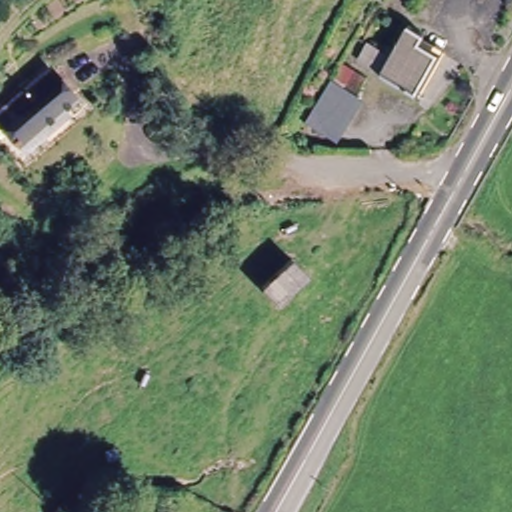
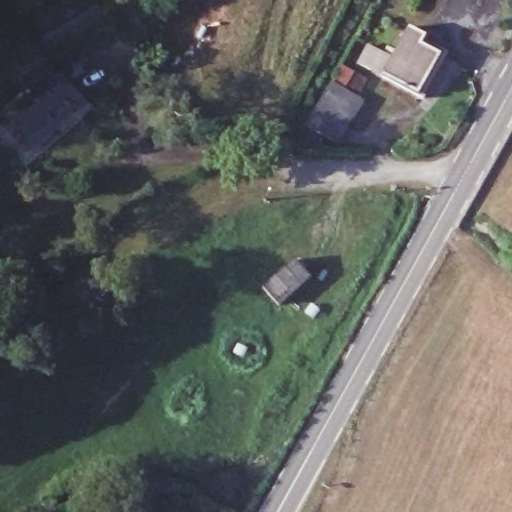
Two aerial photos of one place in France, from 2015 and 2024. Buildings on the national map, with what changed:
unchanged [(415,39),(436,50),(414,91),(353,59),(363,41),(386,54),(403,22),(419,31),(415,39)]
unchanged [(0,132),(0,119),(47,70),(74,96),(20,152),(0,132)]
unchanged [(359,98),(331,140),(305,123),(332,80),(359,98)]
unchanged [(287,255),(304,272),(274,300),(257,283),(287,255)]

